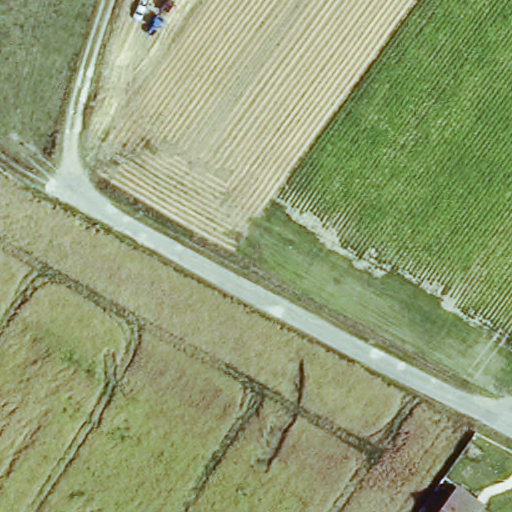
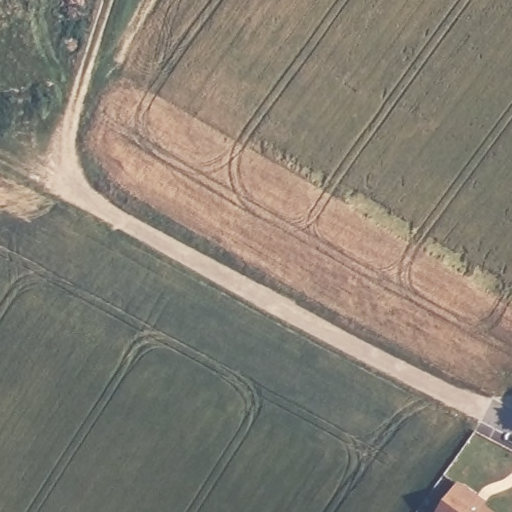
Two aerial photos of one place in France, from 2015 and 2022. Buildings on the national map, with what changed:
unchanged [(457,484),(471,494),(480,500),(475,505),(488,512),(437,512),(457,484)]

